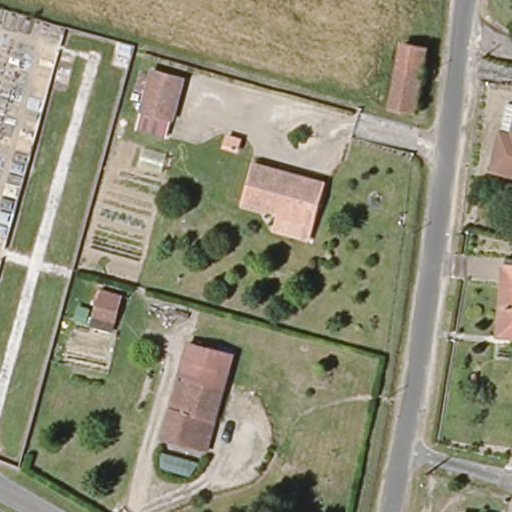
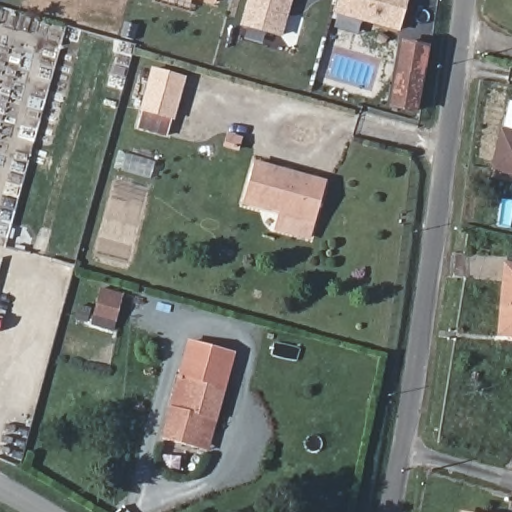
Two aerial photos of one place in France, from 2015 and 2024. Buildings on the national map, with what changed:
new [(243,26),(251,0),(291,0),(281,36),(243,26)]
new [(333,14),(339,0),(408,0),(399,32),(333,14)]
unchanged [(425,50),(413,111),(391,107),(404,45),(425,50)]
unchanged [(152,66),(181,74),(168,119),(139,110),(152,66)]
unchanged [(512,106),(512,176),(496,174),(510,105),(512,106)]
unchanged [(324,180),(314,218),(241,198),(252,160),(324,180)]
unchanged [(502,340),(504,288),(454,283),(456,260),(512,266),(512,340),(502,340)]
unchanged [(114,331),(92,327),(104,288),(127,294),(114,331)]
unchanged [(199,449),(164,439),(172,408),(181,377),(190,345),(235,358),(217,420),(208,451),(199,449)]
unchanged [(463,512),(464,510),(475,512),(463,512)]

